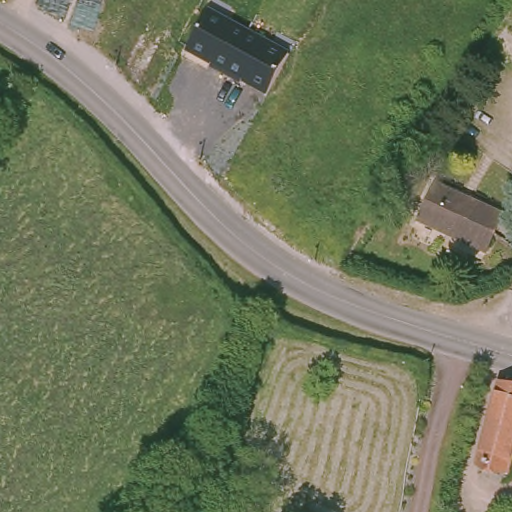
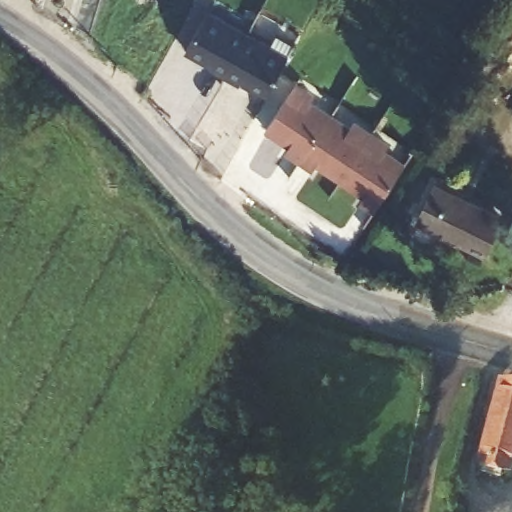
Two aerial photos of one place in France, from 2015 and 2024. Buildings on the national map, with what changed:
unchanged [(207,8),(290,54),(267,95),(240,83),(239,85),(209,69),(211,65),(185,51),(207,8)]
new [(302,80),(320,92),(316,99),(355,124),(360,118),(394,141),(389,147),(410,161),(377,212),(364,202),(367,197),(320,165),(316,170),(289,153),(292,147),(268,131),(302,80)]
unchanged [(504,214),(486,252),(419,220),(437,184),(504,214)]
unchanged [(499,383),(512,386),(512,445),(505,470),(479,463),(499,383)]

